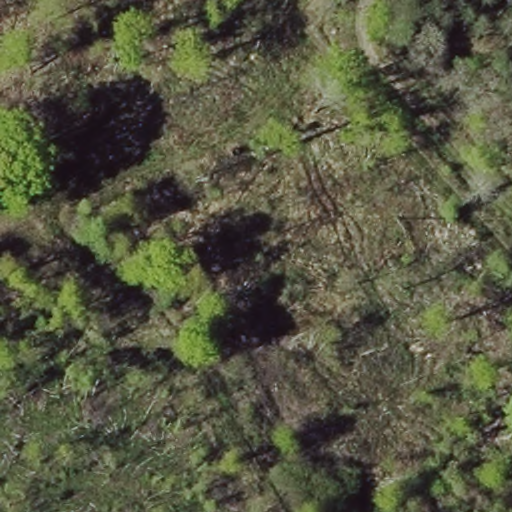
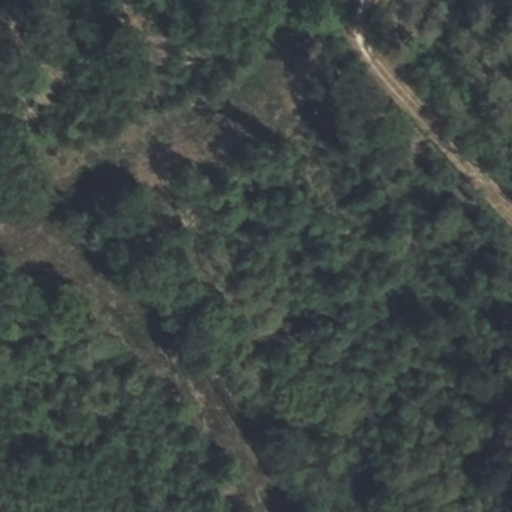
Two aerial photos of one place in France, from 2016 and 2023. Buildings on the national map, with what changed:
[]

